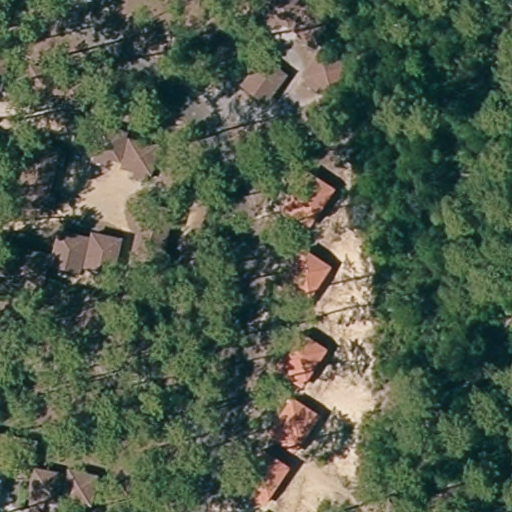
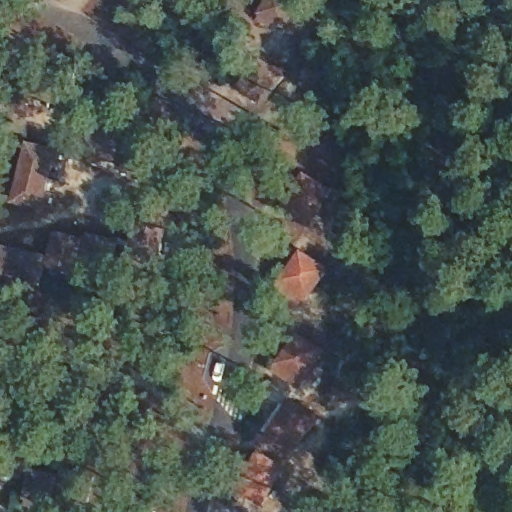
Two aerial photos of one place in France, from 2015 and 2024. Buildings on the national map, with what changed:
unchanged [(260,5),(258,4),(261,0),(294,0),(283,18),(270,11),(267,17),(257,11),(260,5)]
unchanged [(298,28),(286,20),(299,0),(305,0),(325,11),(311,35),(307,33),(304,39),(295,33),(298,28)]
unchanged [(195,53),(200,47),(215,26),(237,41),(222,63),(218,69),(195,53)]
unchanged [(299,77),(304,70),(301,68),(315,46),(339,61),(325,83),(314,76),(309,83),(299,77)]
unchanged [(29,93),(30,86),(27,86),(33,60),(61,66),(54,92),(42,89),(41,95),(29,93)]
unchanged [(235,91),(240,84),(256,62),(279,79),(262,101),(257,107),(235,91)]
unchanged [(70,102),(71,96),(60,93),(66,67),(92,74),(86,99),(84,99),(83,104),(70,102)]
unchanged [(86,159),(88,152),(85,151),(92,126),(119,133),(112,158),(101,155),(99,162),(86,159)]
unchanged [(127,175),(128,168),(115,164),(122,138),(149,145),(142,171),(140,178),(127,175)]
unchanged [(18,169),(24,142),(50,148),(50,150),(59,152),(56,162),(47,160),(44,175),(18,169)]
unchanged [(336,186),(312,225),(285,204),(307,168),(336,186)]
unchanged [(46,203),(38,201),(38,204),(11,198),(17,172),(43,178),(41,190),(49,191),(46,203)]
unchanged [(131,228),(137,202),(165,209),(165,211),(171,213),(168,225),(162,223),(159,235),(131,228)]
unchanged [(45,265),(46,258),(53,231),(79,238),(73,264),(70,272),(45,265)]
unchanged [(77,266),(79,258),(85,233),(114,241),(107,267),(106,274),(77,266)]
unchanged [(160,265),(153,263),(152,266),(124,259),(130,233),(158,240),(155,253),(162,255),(160,265)]
unchanged [(331,262),(306,302),(279,285),(305,243),(331,262)]
unchanged [(4,274),(0,273),(0,245),(10,247),(4,274)]
unchanged [(20,284),(21,277),(9,274),(15,248),(41,254),(35,280),(34,280),(33,287),(20,284)]
unchanged [(329,349),(303,386),(277,367),(302,331),(329,349)]
unchanged [(321,412),(296,451),(268,433),(292,394),(321,412)]
unchanged [(7,462),(0,460),(0,444),(3,431),(29,437),(22,465),(21,469),(6,466),(7,462)]
unchanged [(293,467),(273,503),(241,485),(263,447),(293,467)]
unchanged [(21,496),(23,490),(29,464),(55,470),(49,496),(43,494),(41,500),(21,496)]
unchanged [(66,500),(68,494),(57,492),(63,464),(90,470),(83,497),(80,497),(79,503),(66,500)]
unchanged [(111,512),(108,512),(108,511),(111,512)]
unchanged [(255,512),(254,512),(254,511),(255,512)]

